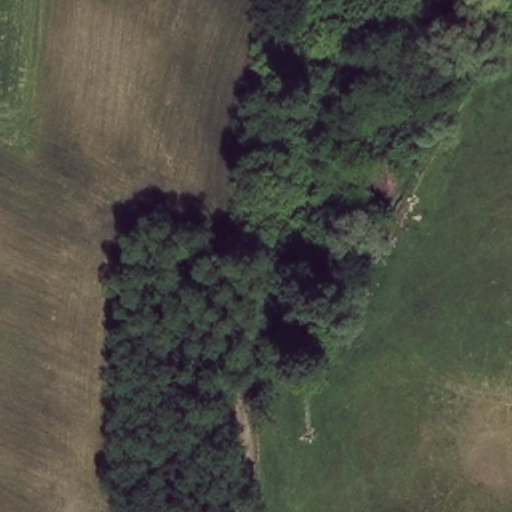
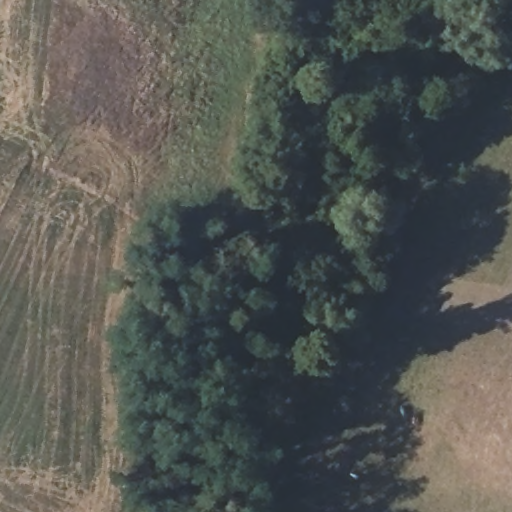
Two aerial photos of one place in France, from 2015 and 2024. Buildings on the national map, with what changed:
unchanged [(221,292),(213,343),(188,338),(197,287),(221,292)]

